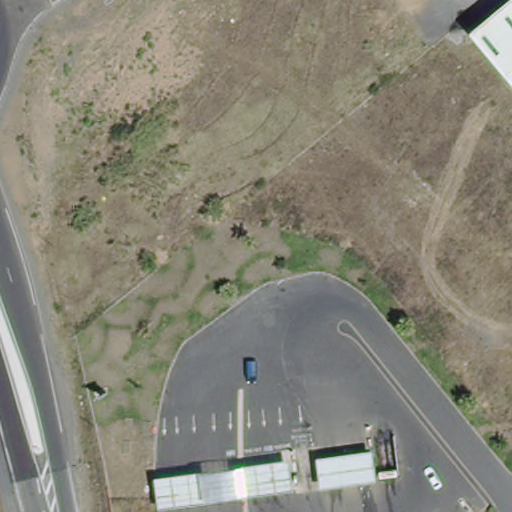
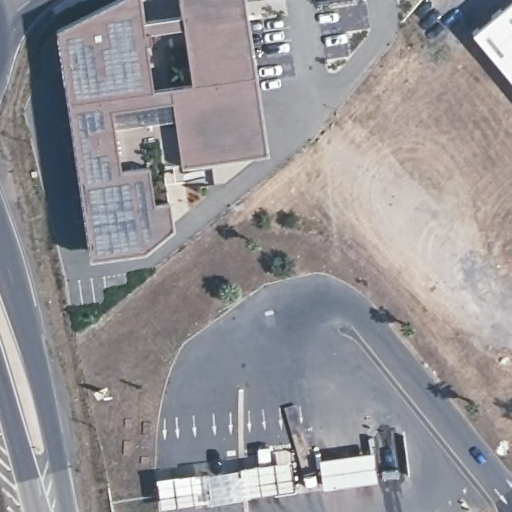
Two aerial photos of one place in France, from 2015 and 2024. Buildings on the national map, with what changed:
new [(139,0),(143,23),(148,22),(150,36),(152,45),(146,46),(155,92),(167,169),(178,229),(153,246),(100,256),(61,35),(129,0),(139,0)]
new [(176,0),(241,0),(254,75),(190,86),(181,31),(150,36),(148,22),(179,17),(176,0)]
unchanged [(512,73),(476,31),(512,0),(512,73)]
new [(190,86),(254,75),(267,154),(231,184),(190,191),(186,165),(185,165),(172,90),(190,86)]
new [(172,90),(185,165),(167,169),(155,92),(172,90)]
unchanged [(160,476),(380,445),(384,476),(164,506),(160,476)]

